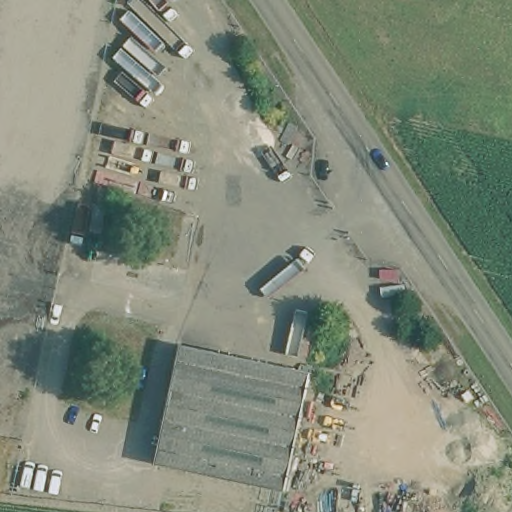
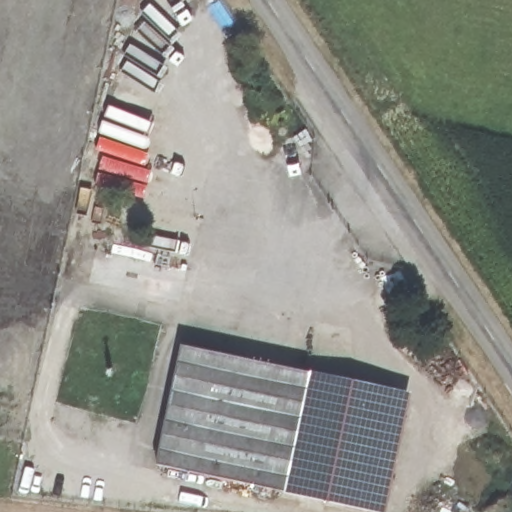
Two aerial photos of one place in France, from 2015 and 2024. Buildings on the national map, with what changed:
unchanged [(309,372),(284,490),(156,463),(181,345),(309,372)]
new [(388,512),(373,512),(284,490),(309,372),(410,392),(388,512)]

